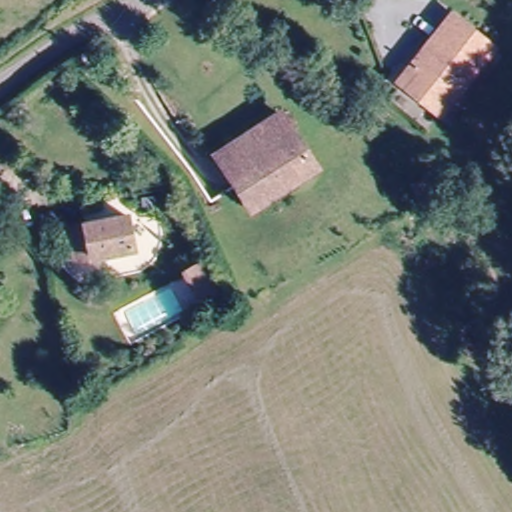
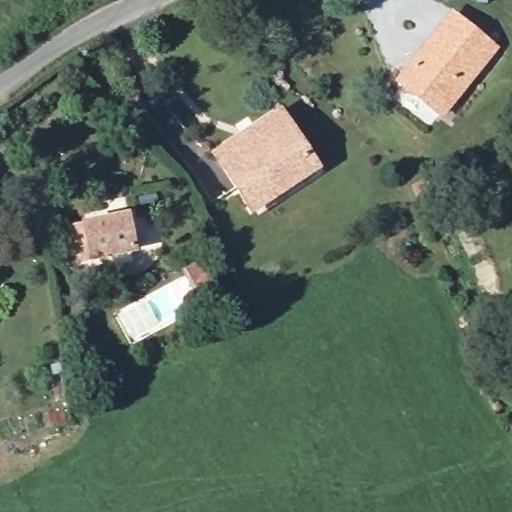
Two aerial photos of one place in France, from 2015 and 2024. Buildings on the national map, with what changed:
unchanged [(400,89),(447,19),(490,47),(443,117),(400,89)]
unchanged [(243,190),(219,154),(281,113),(318,171),(279,196),(256,211),(243,190)]
unchanged [(129,217),(134,245),(76,256),(71,227),(129,217)]
unchanged [(228,283),(215,291),(200,262),(213,255),(228,283)]

